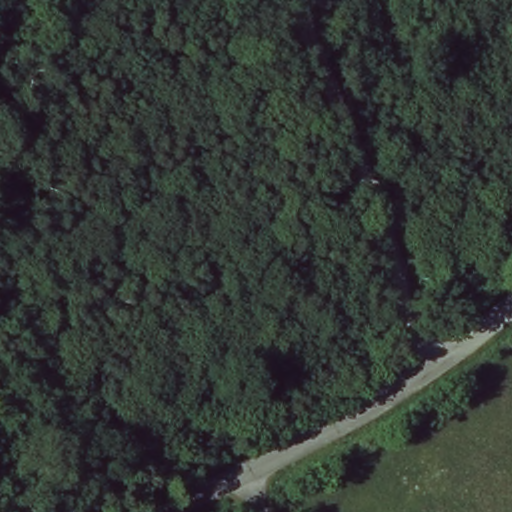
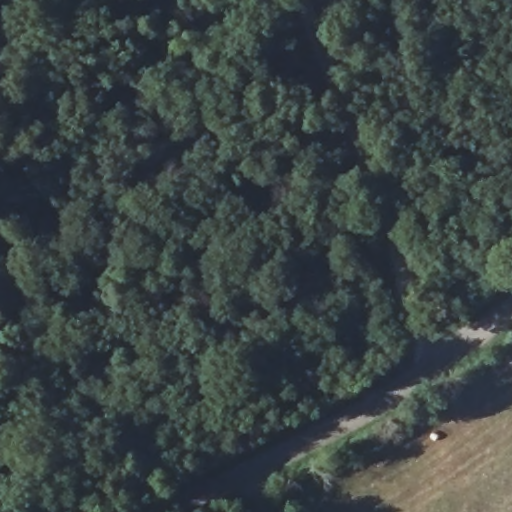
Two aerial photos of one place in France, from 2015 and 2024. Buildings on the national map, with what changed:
[]

